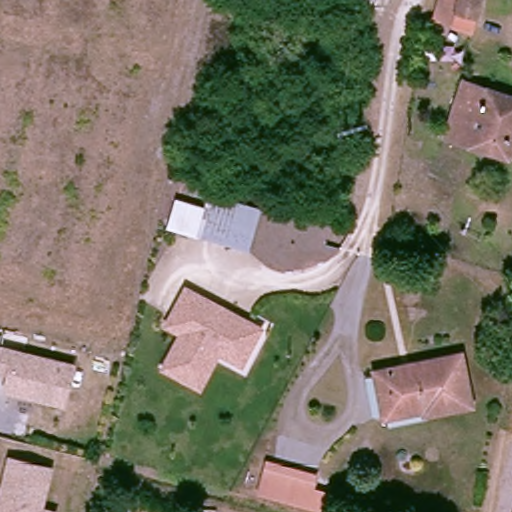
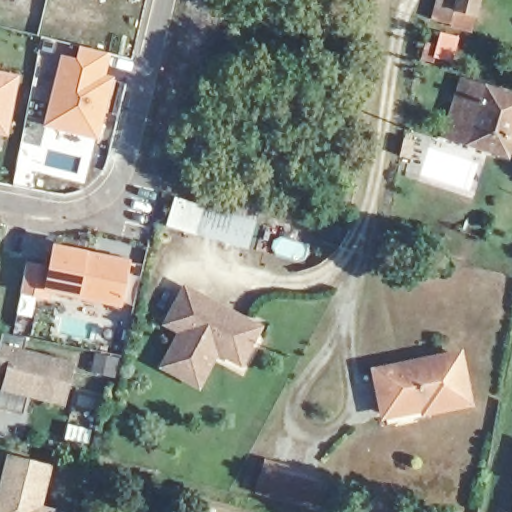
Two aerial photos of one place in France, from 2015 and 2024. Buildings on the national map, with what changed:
unchanged [(430,45),(437,10),(449,12),(453,0),(482,0),(477,16),(467,53),(430,45)]
new [(47,111),(66,115),(69,105),(51,100),(61,60),(76,59),(82,71),(111,57),(106,77),(110,81),(99,142),(43,128),(47,111)]
new [(8,138),(0,136),(0,74),(20,78),(8,138)]
unchanged [(512,101),(512,143),(507,161),(455,144),(456,139),(444,135),(453,105),(460,85),(512,101)]
unchanged [(210,197),(258,211),(246,252),(167,229),(176,201),(206,210),(210,197)]
new [(51,295),(49,302),(21,296),(27,263),(49,267),(52,246),(132,262),(123,309),(51,295)]
unchanged [(169,353),(180,331),(164,323),(183,287),(258,326),(240,362),(217,350),(214,356),(198,385),(175,373),(162,367),(169,353)]
unchanged [(0,371),(0,347),(69,365),(59,404),(0,389),(0,381),(2,372),(0,371)]
unchanged [(460,407),(435,413),(433,407),(395,417),(384,373),(449,359),(460,407)]
unchanged [(47,468),(37,508),(52,512),(51,512),(0,512),(0,484),(7,458),(47,468)]
unchanged [(320,512),(259,495),(267,469),(312,481),(308,492),(327,499),(324,512),(320,512)]

